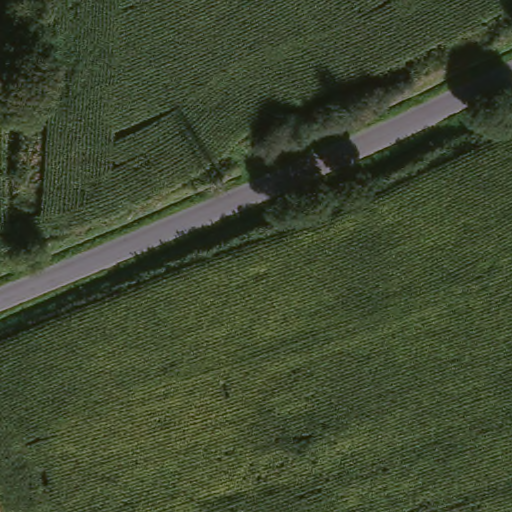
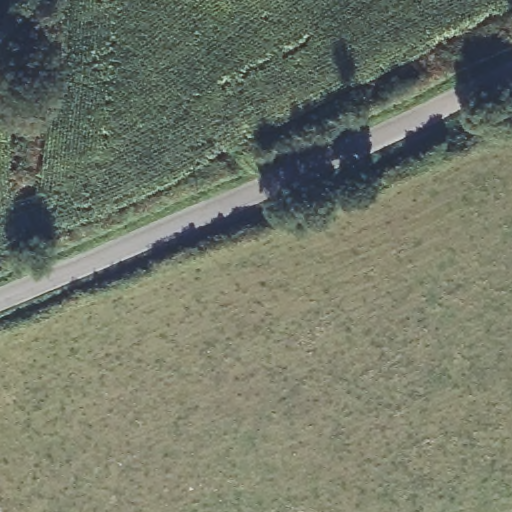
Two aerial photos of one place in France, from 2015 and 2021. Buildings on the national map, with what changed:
[]

